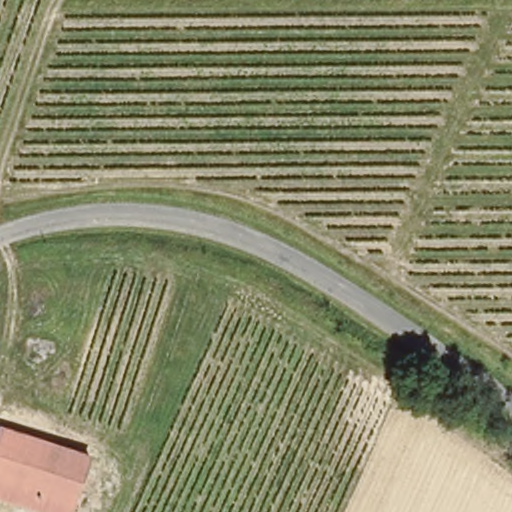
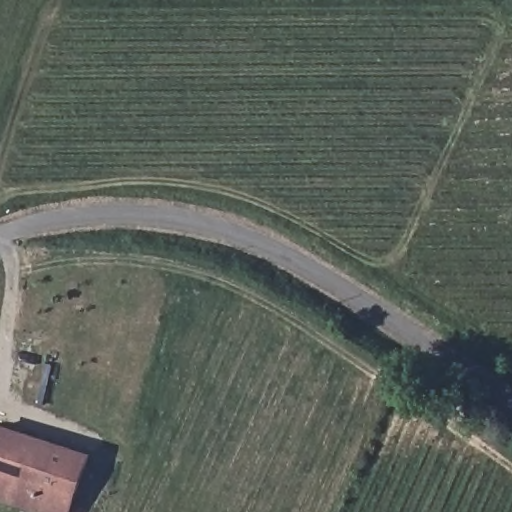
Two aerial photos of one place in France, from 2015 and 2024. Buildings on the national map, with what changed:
unchanged [(65,512),(24,512),(0,504),(0,426),(55,443),(89,454),(65,512)]

